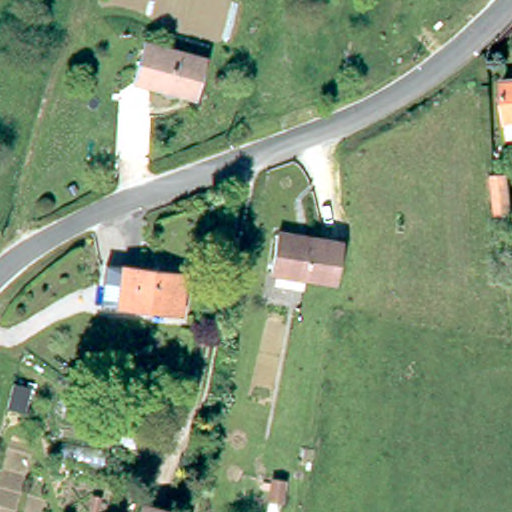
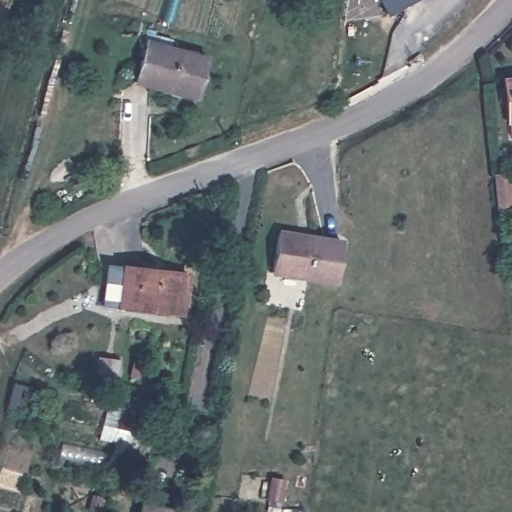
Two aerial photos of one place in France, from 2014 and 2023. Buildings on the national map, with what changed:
new [(377,0),(414,0),(386,16),(377,0)]
unchanged [(134,71),(150,32),(210,56),(195,93),(134,71)]
unchanged [(509,131),(507,116),(504,75),(512,74),(512,131),(509,131)]
unchanged [(335,272),(271,262),(277,224),(340,233),(335,272)]
unchanged [(183,305),(121,302),(123,262),(189,265),(183,305)]
unchanged [(117,375),(99,372),(102,356),(120,360),(117,375)]
unchanged [(142,500),(185,510),(184,512),(140,512),(142,500)]

